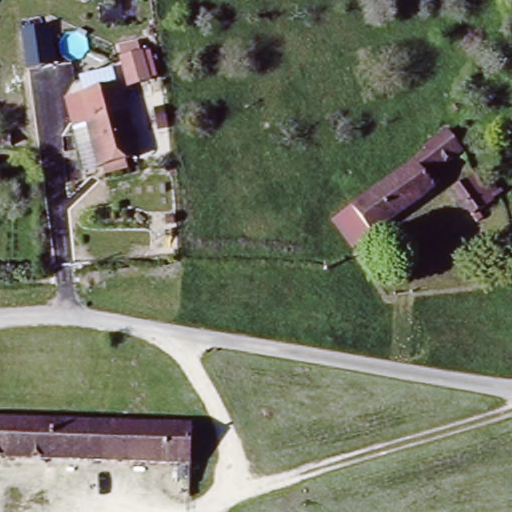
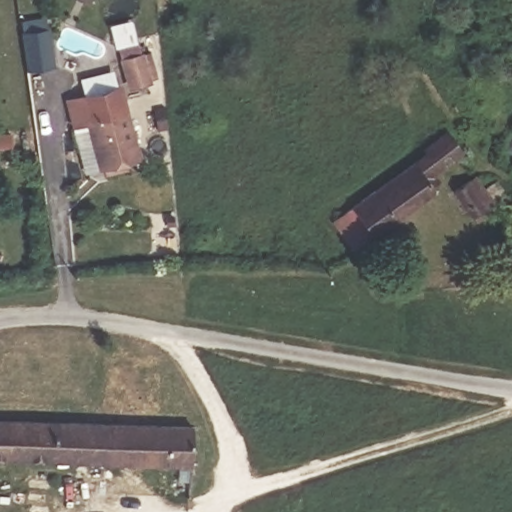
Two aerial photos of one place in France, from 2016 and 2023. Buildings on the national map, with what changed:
unchanged [(22,28),(51,25),(57,67),(27,69),(22,28)]
unchanged [(147,47),(149,59),(158,56),(164,81),(136,88),(128,51),(147,47)]
unchanged [(122,85),(132,115),(98,125),(109,164),(112,175),(106,178),(103,165),(99,167),(87,122),(72,127),(66,99),(122,85)]
unchanged [(164,104),(168,127),(159,130),(154,106),(164,104)]
unchanged [(132,115),(144,159),(132,162),(134,170),(112,177),(98,125),(132,115)]
unchanged [(470,148),(442,170),(449,179),(442,183),(444,185),(364,250),(340,215),(359,200),(432,145),(431,143),(455,124),(470,148)]
unchanged [(10,131),(10,141),(0,142),(0,131),(10,131)]
unchanged [(495,200),(481,211),(485,217),(479,222),(457,189),(479,172),(495,200)]
unchanged [(30,415),(29,452),(0,451),(0,414),(30,415)]
unchanged [(195,420),(194,472),(180,472),(180,457),(29,452),(30,415),(195,420)]

